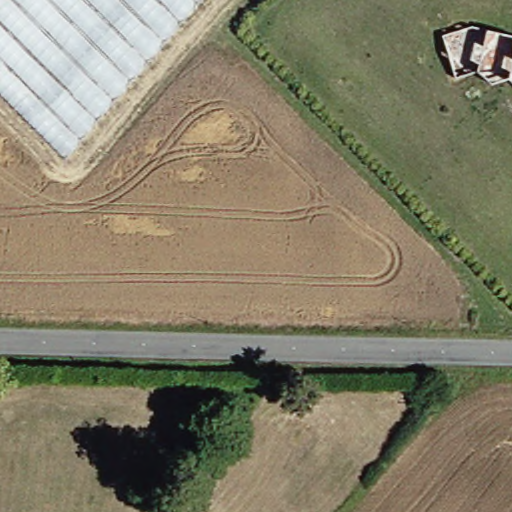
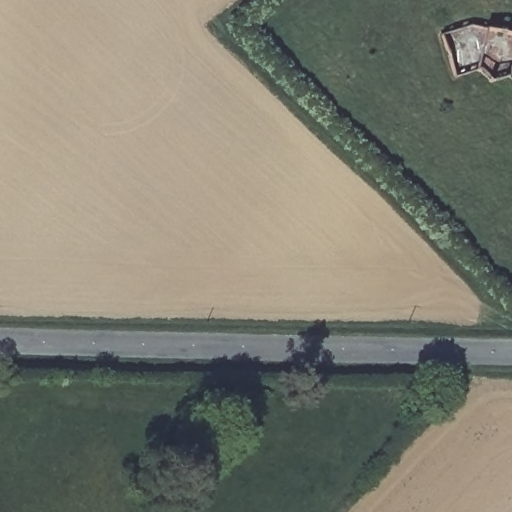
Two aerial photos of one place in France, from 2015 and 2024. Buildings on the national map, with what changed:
demolished [(0,100),(0,0),(196,0),(61,159),(0,100)]
new [(443,35),(474,26),(487,29),(512,37),(512,80),(509,77),(489,83),(477,71),(456,78),(443,35)]

